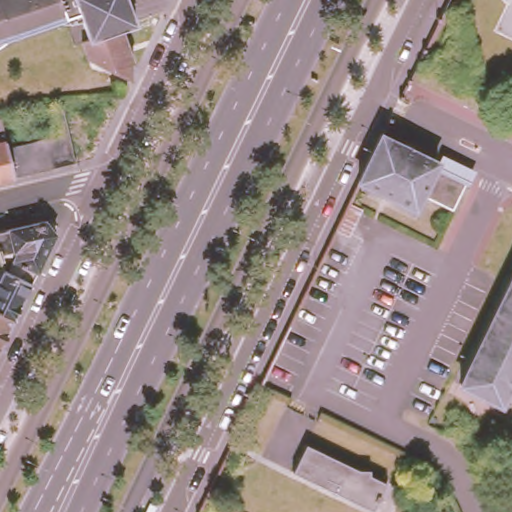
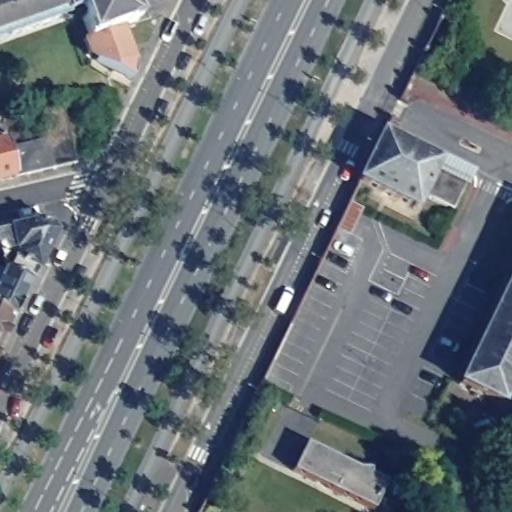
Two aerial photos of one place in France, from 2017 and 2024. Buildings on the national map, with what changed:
unchanged [(91,53),(86,54),(81,40),(87,38),(78,10),(65,15),(65,17),(0,39),(0,0),(127,0),(135,22),(121,26),(127,43),(131,56),(128,57),(132,69),(129,77),(130,78),(130,79),(112,70),(94,61),(91,53)]
unchanged [(47,143),(40,111),(58,107),(72,169),(54,173),(42,176),(29,179),(15,182),(0,185),(0,120),(1,120),(7,152),(22,149),(35,146),(47,143)]
unchanged [(414,208),(358,182),(381,136),(436,163),(414,208)]
unchanged [(441,165),(454,171),(456,170),(470,176),(454,210),(425,197),(441,165)]
unchanged [(336,228),(347,205),(360,211),(349,234),(336,228)]
unchanged [(63,220),(36,275),(10,263),(7,261),(0,230),(0,225),(58,212),(63,220)]
unchanged [(9,265),(10,263),(36,275),(19,311),(4,341),(0,339),(0,267),(3,262),(9,265)]
unchanged [(512,277),(512,379),(500,404),(460,384),(512,277)]
unchanged [(0,349),(0,339),(4,341),(0,349)]
unchanged [(375,473),(374,479),(391,487),(379,512),(372,512),(296,477),(310,448),(363,473),(375,473)]

